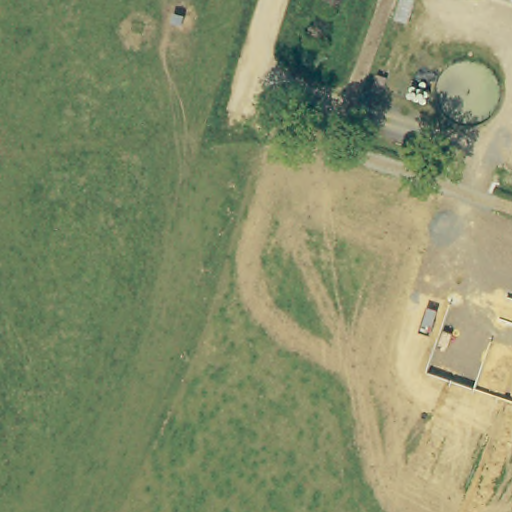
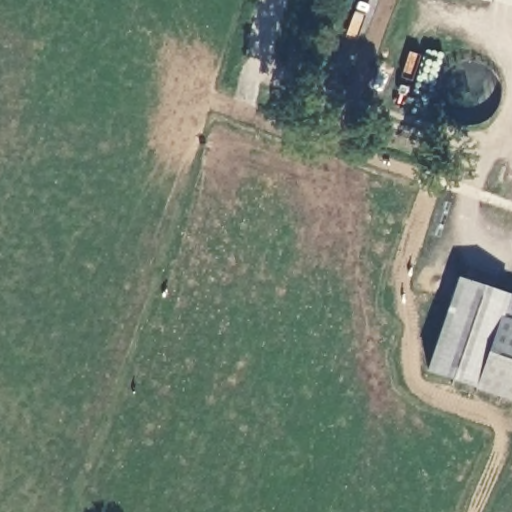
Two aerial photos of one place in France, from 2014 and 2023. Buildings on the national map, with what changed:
new [(427,371),(458,278),(512,296),(512,401),(427,371)]

